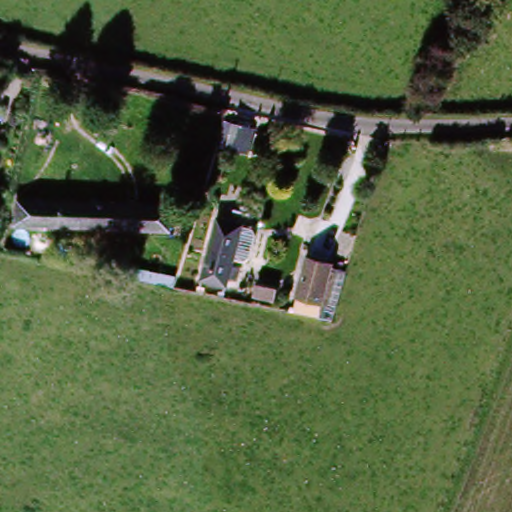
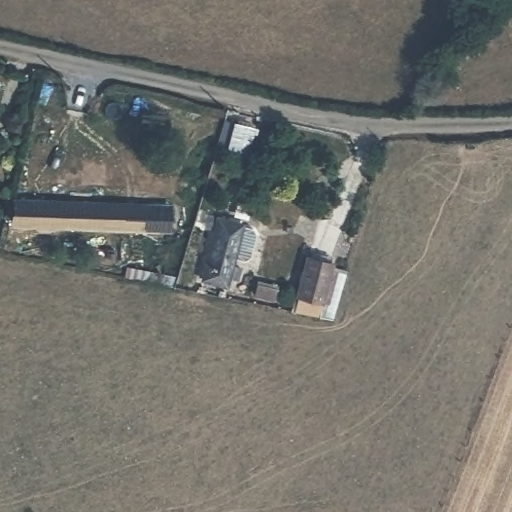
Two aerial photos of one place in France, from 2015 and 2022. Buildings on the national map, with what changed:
unchanged [(165,231),(10,233),(10,209),(165,209),(165,231)]
unchanged [(244,233),(224,296),(197,287),(217,225),(244,233)]
unchanged [(293,294),(300,259),(324,263),(317,299),(293,294)]
unchanged [(170,273),(167,287),(112,276),(115,264),(170,273)]

